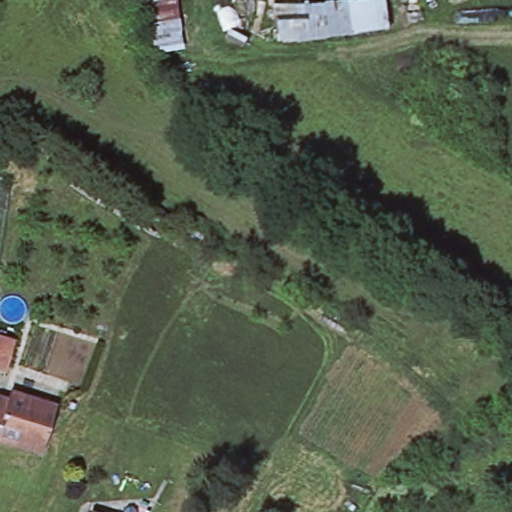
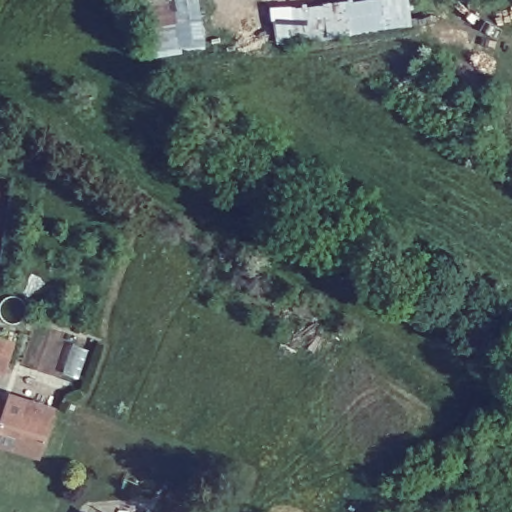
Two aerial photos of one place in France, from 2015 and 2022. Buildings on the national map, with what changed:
unchanged [(12,398),(14,389),(20,391),(6,434),(0,432),(0,394),(12,398)]
unchanged [(20,391),(56,402),(43,445),(6,434),(20,391)]

